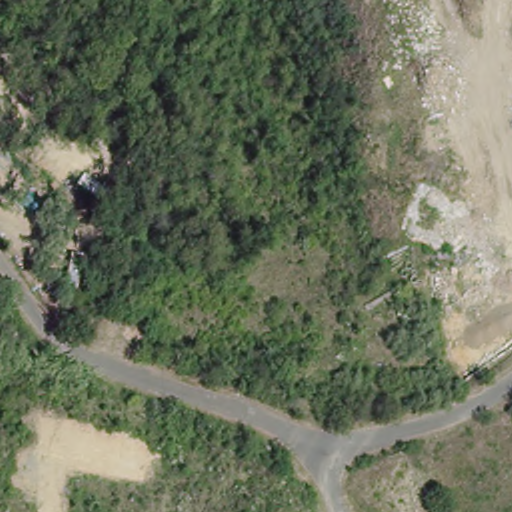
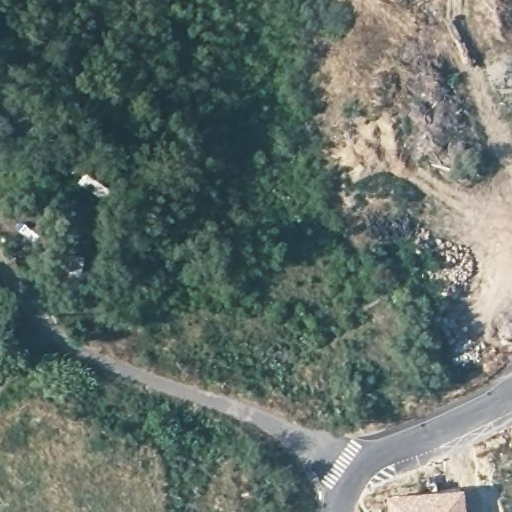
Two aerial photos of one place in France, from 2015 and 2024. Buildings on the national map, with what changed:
new [(461,485),(464,512),(387,512),(385,493),(461,485)]

